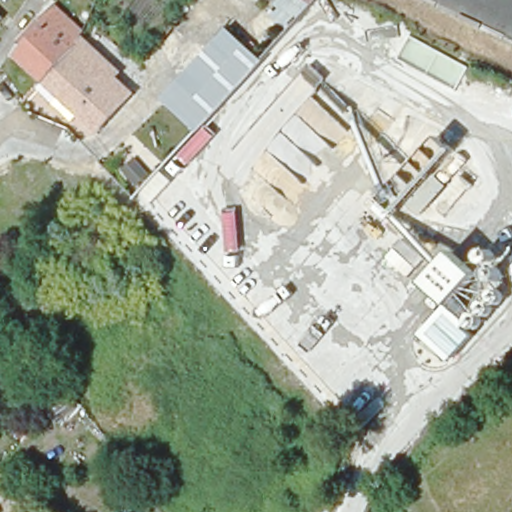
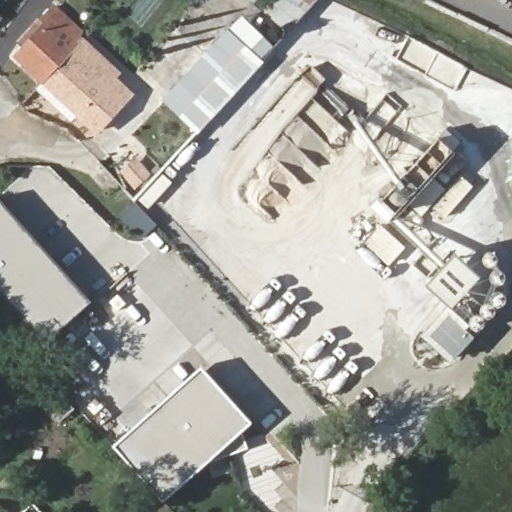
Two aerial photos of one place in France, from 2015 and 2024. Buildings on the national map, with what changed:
unchanged [(81,31),(75,37),(107,73),(131,92),(96,132),(75,113),(67,119),(34,89),(39,82),(9,54),(33,29),(28,24),(52,4),(81,31)]
unchanged [(226,30),(262,63),(196,134),(161,101),(226,30)]
unchanged [(397,183),(441,139),(456,153),(412,197),(397,183)]
new [(44,339),(0,290),(0,203),(88,300),(44,339)]
unchanged [(446,252),(473,272),(457,293),(431,273),(446,252)]
unchanged [(470,285),(485,299),(497,286),(510,299),(483,324),(457,297),(470,285)]
unchanged [(468,333),(448,354),(418,327),(439,305),(468,333)]
new [(247,448),(205,462),(162,499),(115,446),(201,370),(248,423),(240,431),(247,448)]

